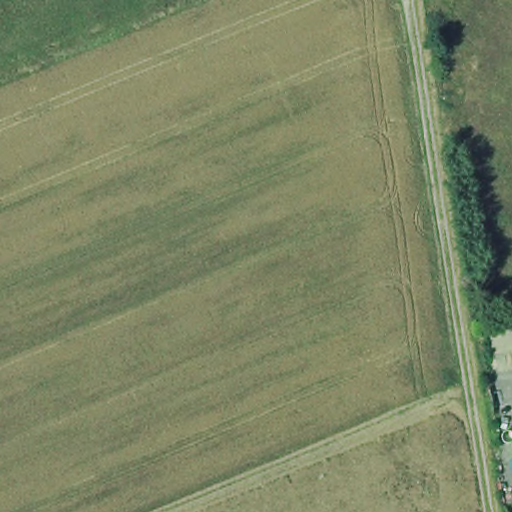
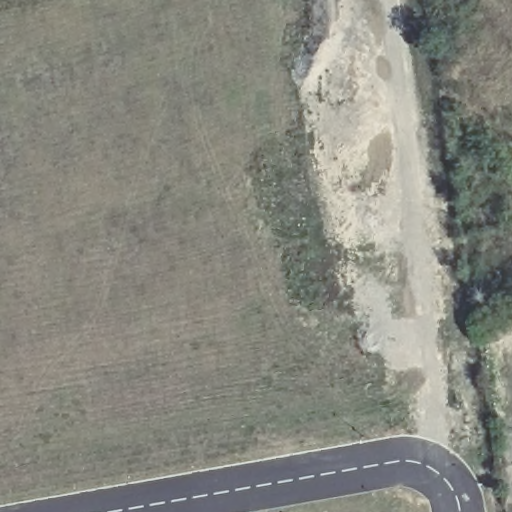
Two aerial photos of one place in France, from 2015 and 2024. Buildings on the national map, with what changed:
[]

